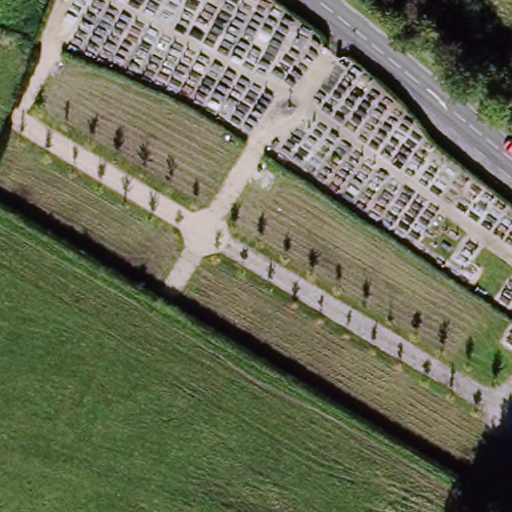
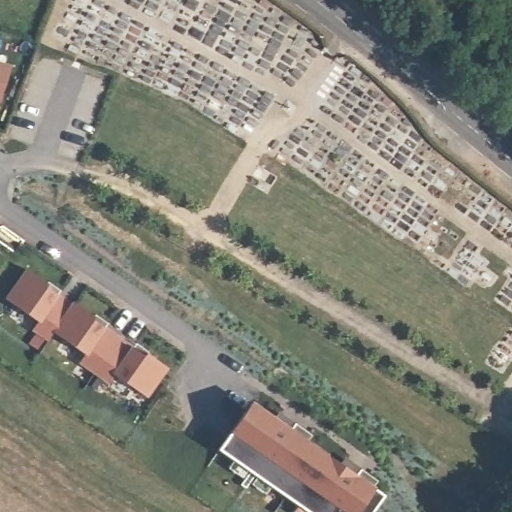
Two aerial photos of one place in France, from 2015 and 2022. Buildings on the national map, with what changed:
new [(12,67),(0,99),(0,63),(12,67)]
new [(49,286),(51,283),(61,291),(58,296),(72,304),(75,301),(110,325),(108,329),(134,347),(137,343),(171,370),(149,400),(116,377),(111,387),(81,365),(86,357),(54,333),(48,342),(32,332),(37,323),(6,298),(25,271),(49,286)]
new [(386,497),(375,512),(306,512),(219,451),(232,434),(252,403),(386,497)]

